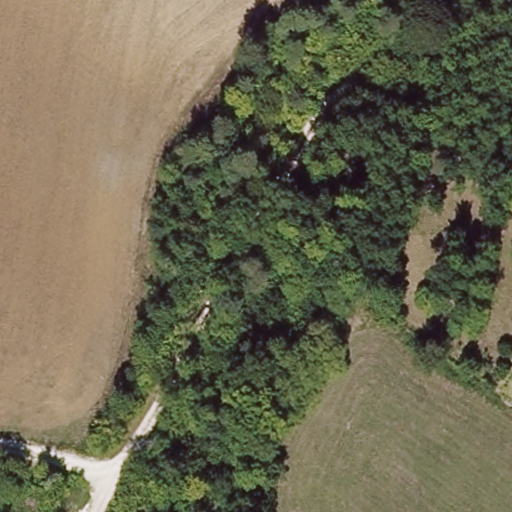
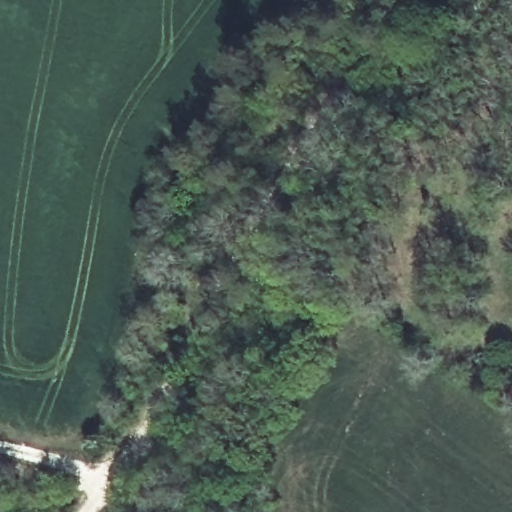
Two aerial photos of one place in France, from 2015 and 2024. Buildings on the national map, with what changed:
[]

